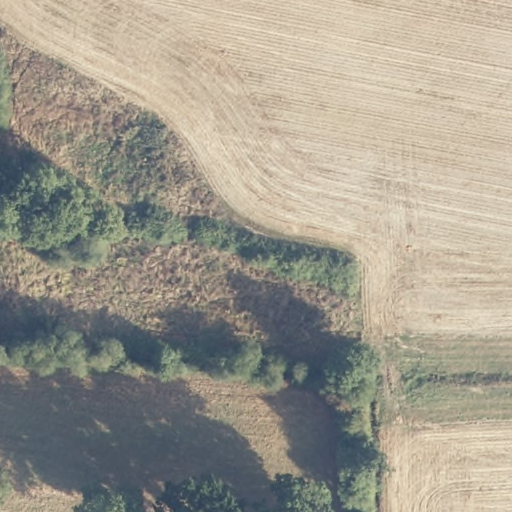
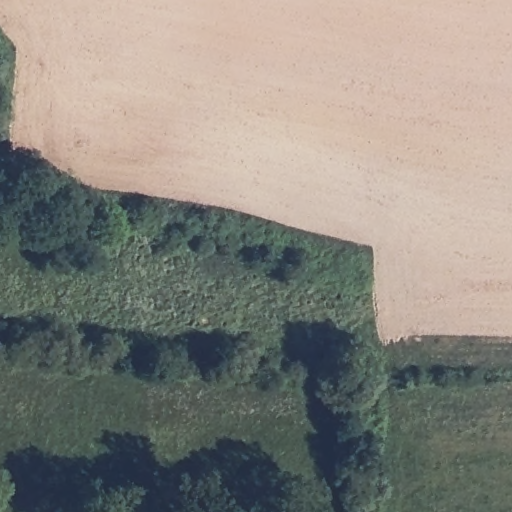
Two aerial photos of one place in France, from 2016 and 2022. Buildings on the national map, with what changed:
[]

